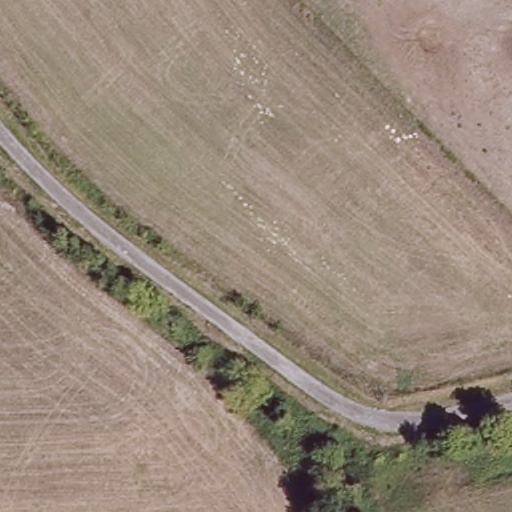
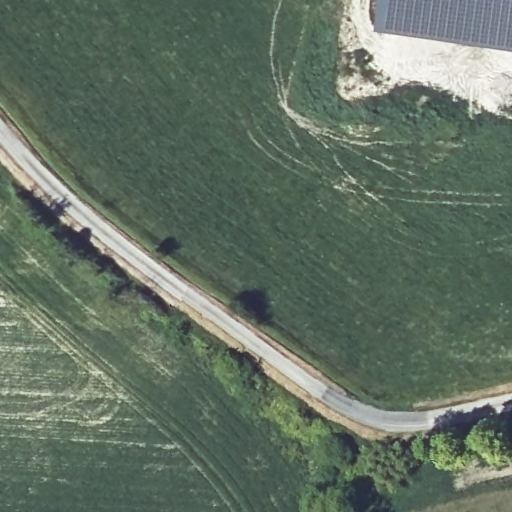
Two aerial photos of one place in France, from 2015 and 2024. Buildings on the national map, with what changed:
new [(385,0),(512,0),(512,46),(381,25),(385,0)]

